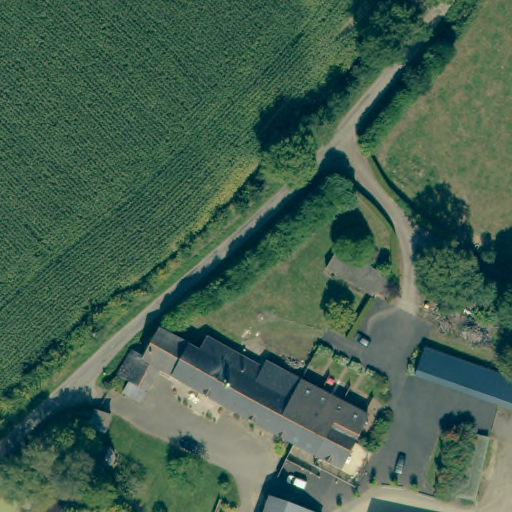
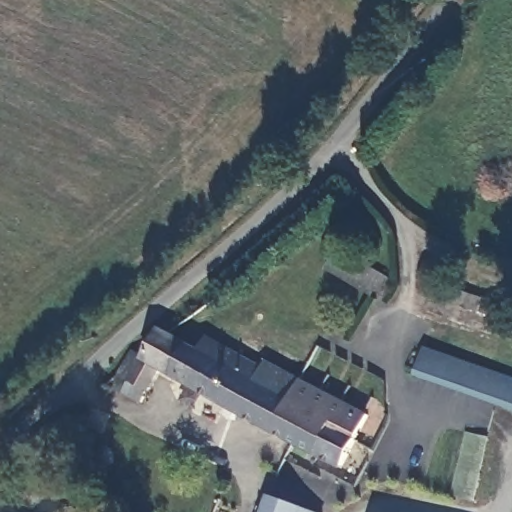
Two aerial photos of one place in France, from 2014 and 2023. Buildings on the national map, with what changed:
unchanged [(375,271),(360,288),(323,258),(337,242),(375,271)]
unchanged [(155,367),(139,397),(120,388),(127,376),(118,371),(116,370),(130,346),(140,352),(142,348),(157,324),(167,330),(196,346),(203,334),(242,355),(245,350),(298,379),(270,425),(155,367)]
unchanged [(416,375),(426,350),(512,387),(512,416),(416,375)]
unchanged [(369,409),(341,462),(270,425),(298,379),(301,374),(369,409)]
unchanged [(326,512),(259,512),(266,489),(327,507),(326,512)]

